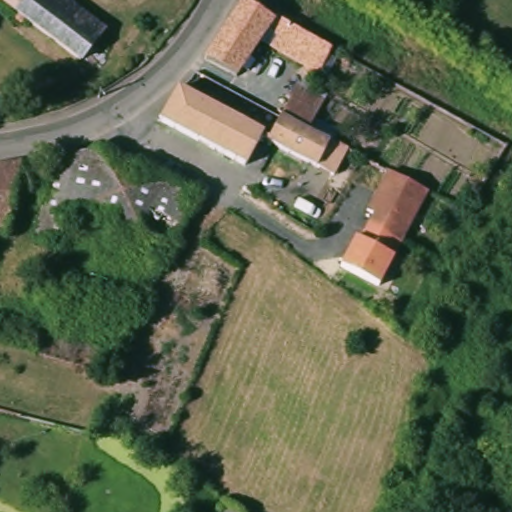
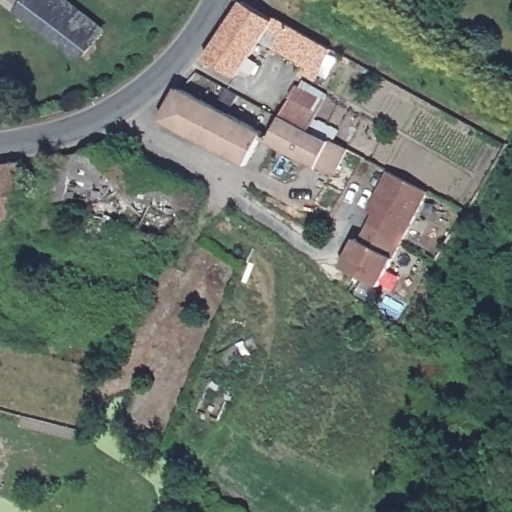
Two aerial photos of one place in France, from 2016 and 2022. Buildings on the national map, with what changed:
unchanged [(21,14),(3,0),(32,0),(21,14)]
unchanged [(24,16),(21,14),(32,0),(44,0),(49,3),(51,1),(88,30),(87,33),(98,42),(82,62),(29,20),(24,16)]
unchanged [(275,22),(332,54),(317,80),(275,54),(261,46),(236,83),(207,64),(246,7),(273,24),(275,22)]
unchanged [(332,93),(310,130),(306,136),(287,125),(282,122),(280,121),(307,78),(332,93)]
unchanged [(215,153),(162,124),(179,92),(182,94),(266,139),(263,143),(247,171),(215,153)]
unchanged [(337,176),(335,179),(270,146),(282,122),(287,125),(306,136),(310,130),(312,132),(320,120),(338,131),(332,143),(350,153),(337,176)]
unchanged [(42,219),(52,163),(107,155),(166,182),(150,214),(124,202),(115,230),(74,219),(66,243),(54,240),(51,251),(33,244),(42,219)]
unchanged [(430,188),(382,273),(379,280),(342,259),(347,249),(357,232),(361,234),(375,208),(368,205),(391,166),(430,188)]
unchanged [(6,237),(0,236),(0,172),(23,168),(6,237)]
unchanged [(124,202),(150,214),(166,182),(198,198),(175,251),(115,230),(124,202)]
unchanged [(29,359),(22,380),(8,375),(14,354),(29,359)]
unchanged [(243,509),(241,512),(216,512),(222,500),(243,509)]

